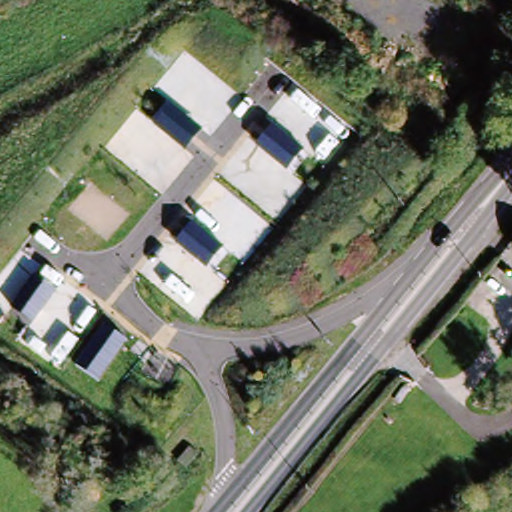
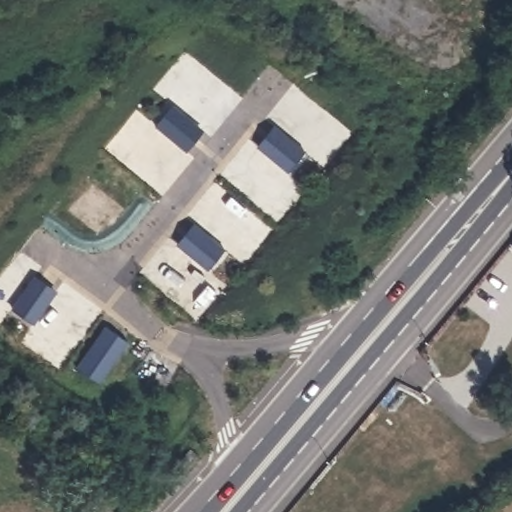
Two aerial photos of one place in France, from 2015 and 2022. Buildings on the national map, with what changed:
unchanged [(186,151),(155,127),(172,105),(204,131),(186,151)]
unchanged [(274,125),(305,151),(287,174),(255,148),(274,125)]
unchanged [(194,222),(225,249),(207,272),(175,245),(194,222)]
unchanged [(508,242),(512,238),(512,246),(508,242)]
unchanged [(35,326),(13,310),(36,277),(58,291),(35,326)]
unchanged [(130,343),(100,384),(77,367),(105,327),(130,343)]

